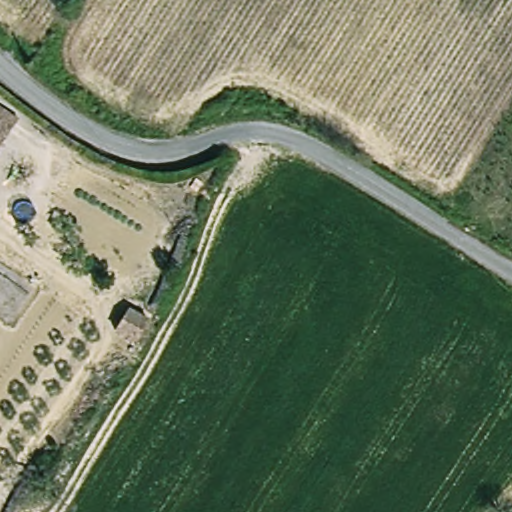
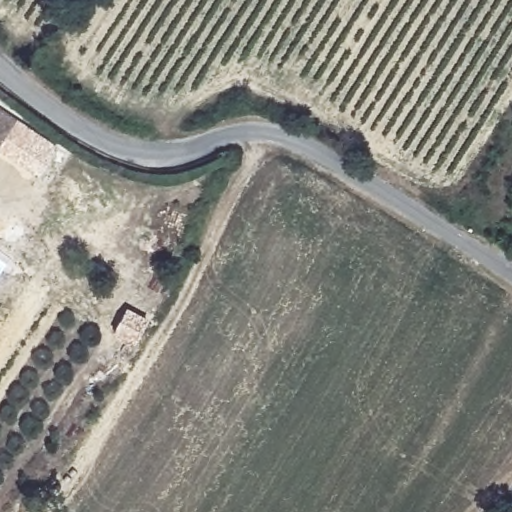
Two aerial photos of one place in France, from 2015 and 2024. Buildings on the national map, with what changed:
unchanged [(0,147),(0,105),(20,117),(0,147)]
unchanged [(135,339),(116,326),(129,305),(147,317),(135,339)]

